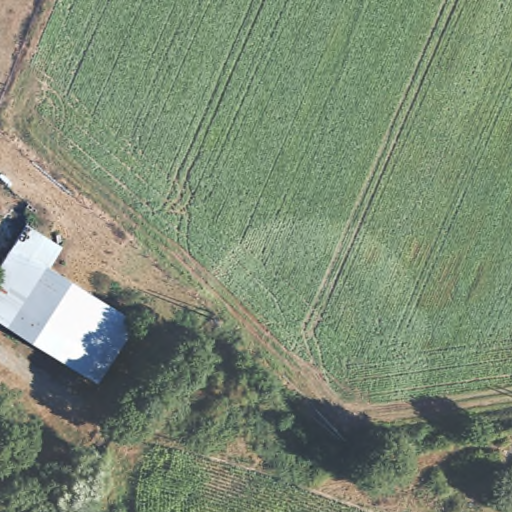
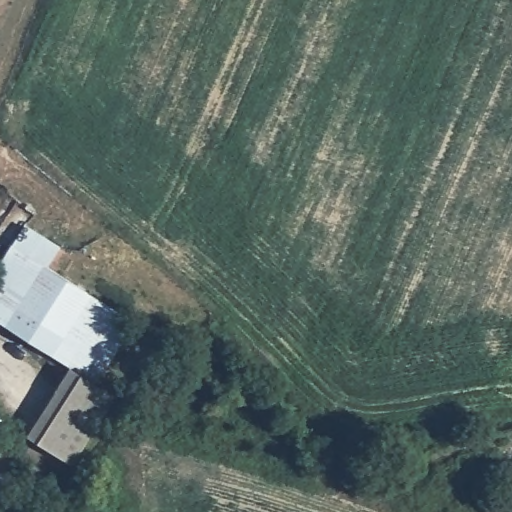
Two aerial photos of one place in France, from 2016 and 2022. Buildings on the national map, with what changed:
unchanged [(45,238),(32,258),(66,282),(117,319),(77,377),(55,362),(16,334),(0,322),(0,258),(24,224),(45,238)]
new [(74,465),(26,437),(67,370),(77,377),(117,319),(133,330),(97,385),(118,399),(74,465)]

